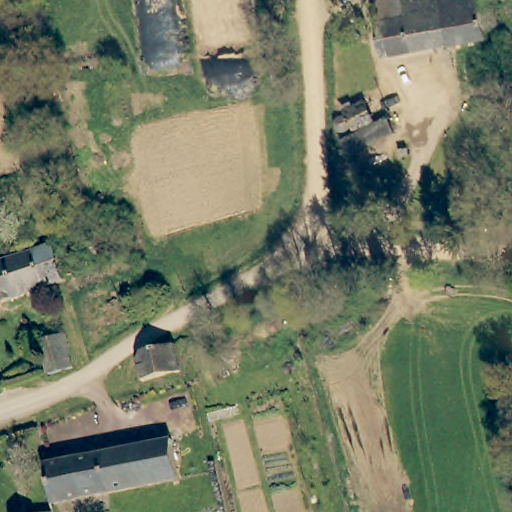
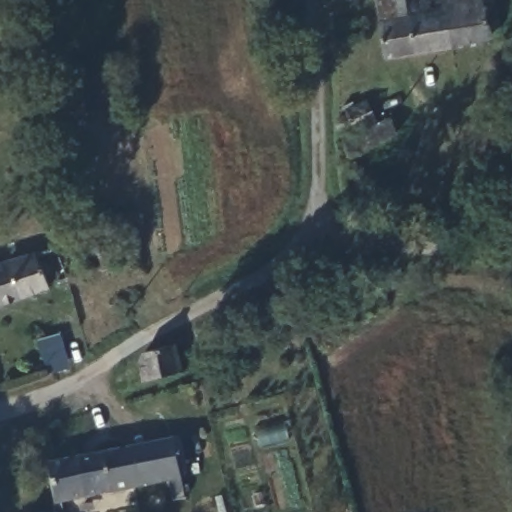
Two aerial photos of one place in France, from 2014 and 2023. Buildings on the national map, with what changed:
unchanged [(373,0),(440,0),(448,40),(383,53),(373,0)]
unchanged [(491,0),(496,23),(485,26),(486,32),(448,40),(440,0),(491,0)]
unchanged [(379,118),(345,120),(344,86),(378,85),(379,118)]
unchanged [(374,141),(354,152),(351,148),(342,154),(338,142),(347,137),(345,133),(367,123),(374,141)]
unchanged [(397,155),(351,178),(344,162),(389,140),(397,155)]
unchanged [(32,251),(53,244),(65,281),(45,288),(21,295),(0,302),(0,262),(9,259),(32,251)]
unchanged [(59,328),(62,328),(71,362),(44,370),(35,336),(59,328)]
unchanged [(180,375),(143,383),(137,356),(175,347),(180,375)]
unchanged [(69,462),(98,457),(143,448),(164,444),(172,483),(151,487),(105,495),(77,500),(45,506),(37,468),(69,462)]

